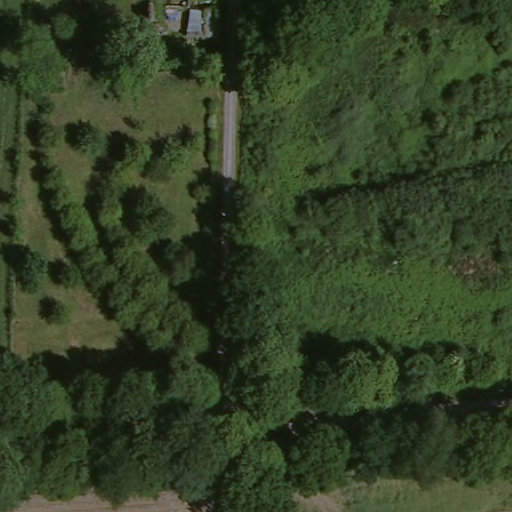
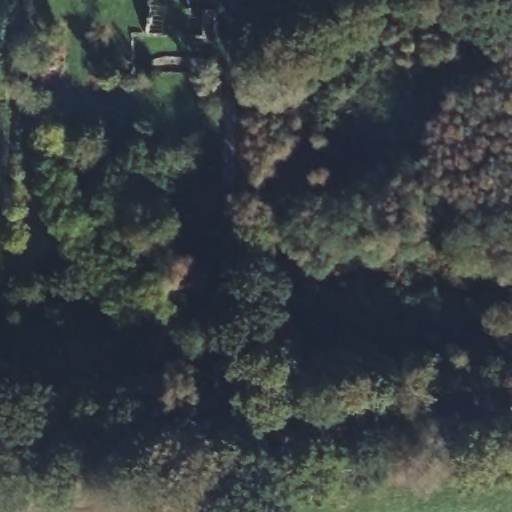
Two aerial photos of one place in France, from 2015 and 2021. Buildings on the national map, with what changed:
unchanged [(216,33),(152,29),(153,0),(216,0),(216,33)]

